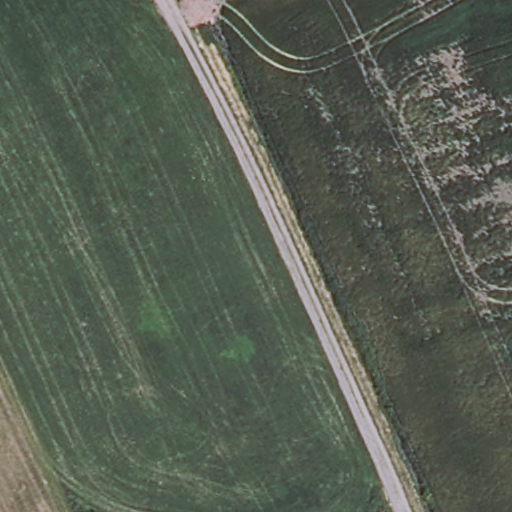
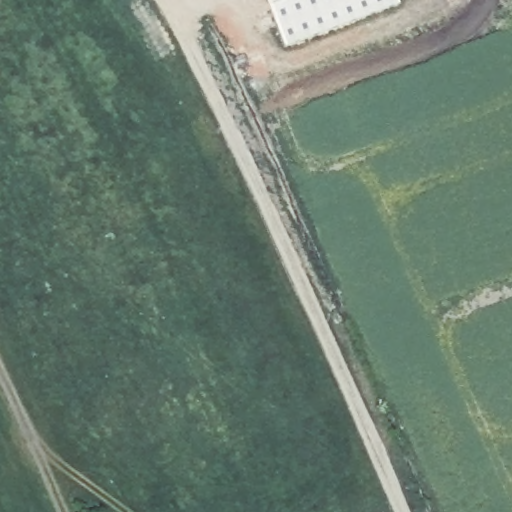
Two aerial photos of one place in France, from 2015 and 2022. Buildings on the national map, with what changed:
new [(268,0),(396,0),(399,7),(286,47),(268,0)]

